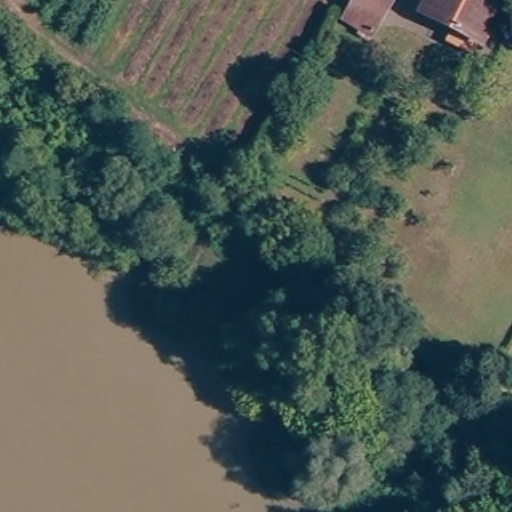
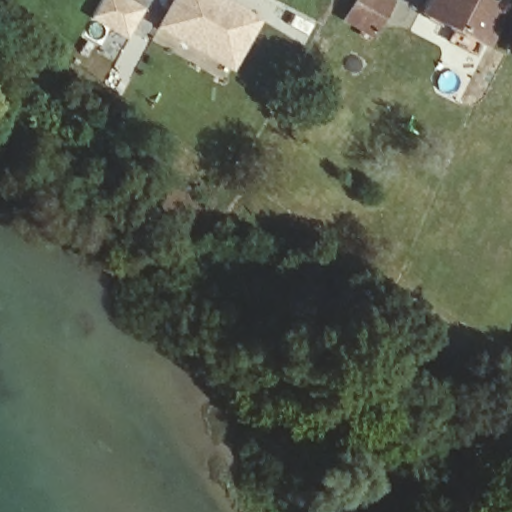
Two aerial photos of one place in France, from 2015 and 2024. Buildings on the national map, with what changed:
new [(125,40),(88,20),(101,0),(128,0),(145,9),(125,40)]
new [(232,73),(155,28),(172,0),(229,0),(263,20),(232,73)]
unchanged [(343,20),(355,0),(375,0),(389,8),(372,36),(343,20)]
unchanged [(483,46),(423,15),(430,0),(490,0),(502,6),(483,46)]

